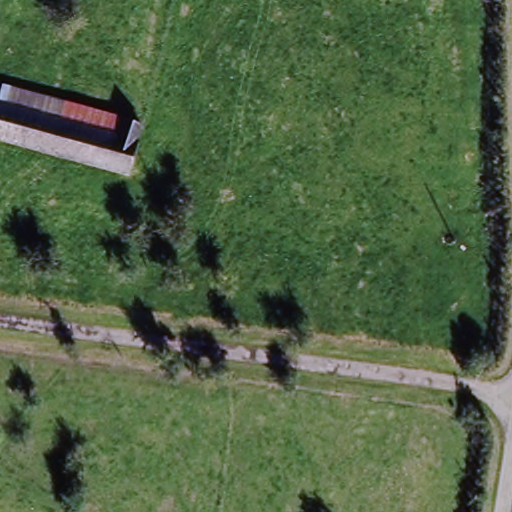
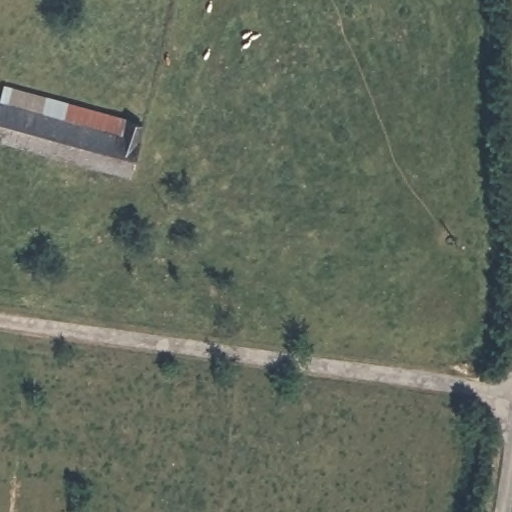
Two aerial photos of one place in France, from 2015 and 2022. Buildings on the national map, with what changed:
unchanged [(116,133),(0,106),(0,104),(5,87),(120,112),(116,133)]
unchanged [(139,117),(127,174),(0,142),(0,106),(116,133),(120,112),(139,117)]

